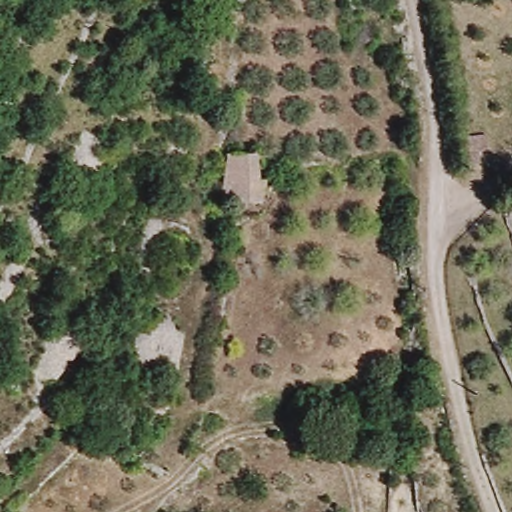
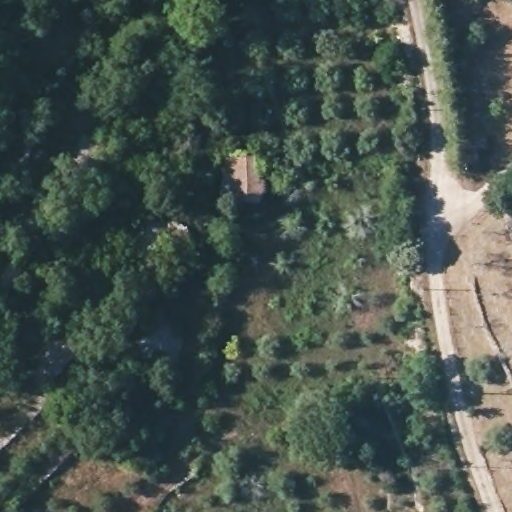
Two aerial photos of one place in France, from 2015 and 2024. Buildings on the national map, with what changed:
unchanged [(490,148),(480,148),(480,158),(477,159),(465,159),(465,136),(465,131),(491,130),(491,136),(490,148)]
unchanged [(255,155),(260,168),(259,178),(268,178),(262,200),(220,198),(227,155),(255,155)]

